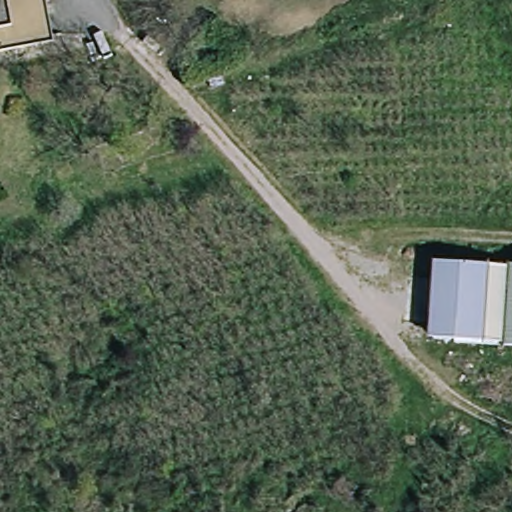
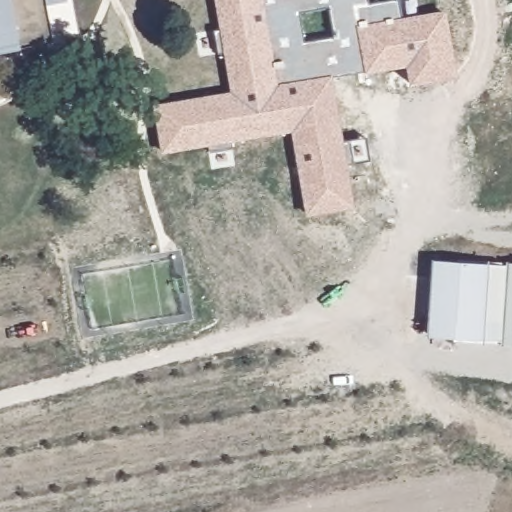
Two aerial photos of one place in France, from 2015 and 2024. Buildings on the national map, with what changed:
unchanged [(0,47),(0,0),(47,0),(55,37),(0,47)]
new [(230,92),(223,52),(218,53),(215,32),(220,31),(214,0),(366,0),(367,5),(397,0),(399,17),(445,10),(457,76),(410,85),(405,66),(365,75),(365,71),(332,78),(342,142),(365,139),(370,160),(346,164),(355,206),(306,216),(290,131),(232,141),(232,148),(210,152),(208,146),(161,153),(152,105),(230,92)]
unchanged [(434,309),(435,298),(440,255),(512,260),(512,344),(484,342),(430,337),(434,309)]

